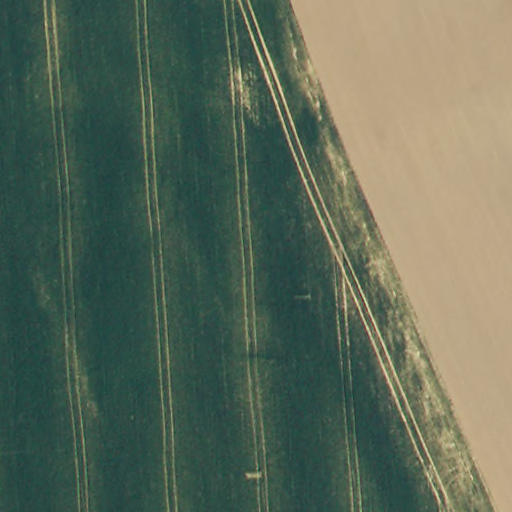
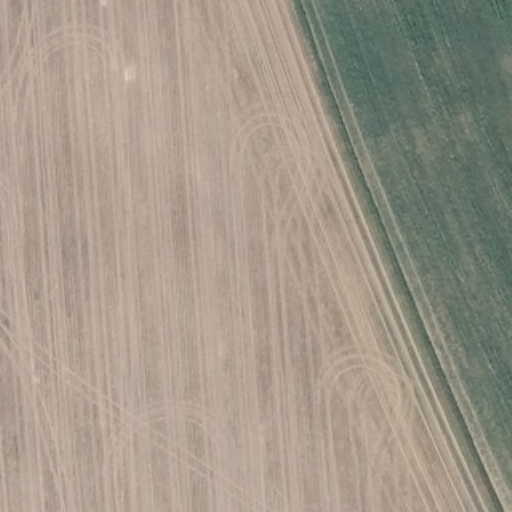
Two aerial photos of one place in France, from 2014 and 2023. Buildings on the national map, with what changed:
[]

